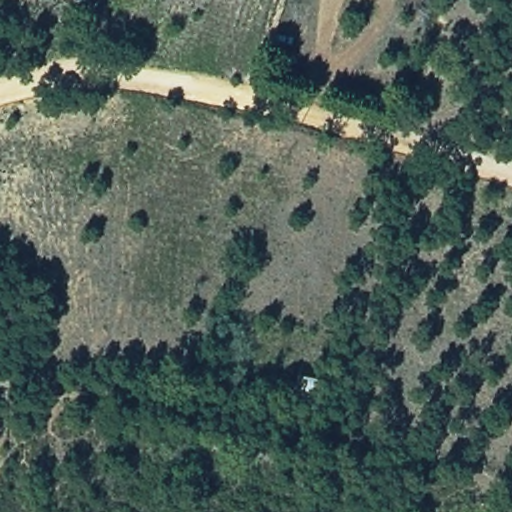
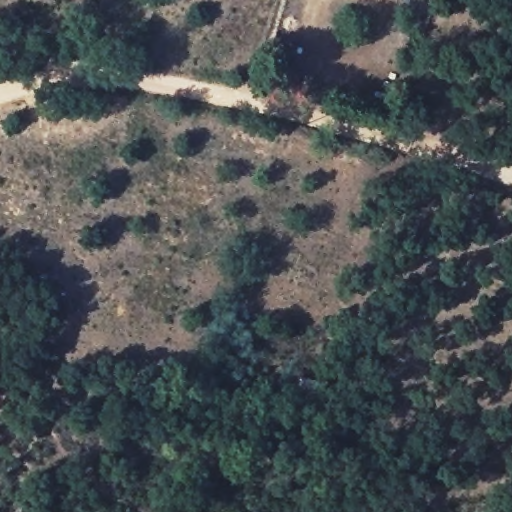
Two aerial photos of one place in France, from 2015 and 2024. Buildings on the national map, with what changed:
unchanged [(325,405),(298,398),(302,378),(328,381),(325,405)]

